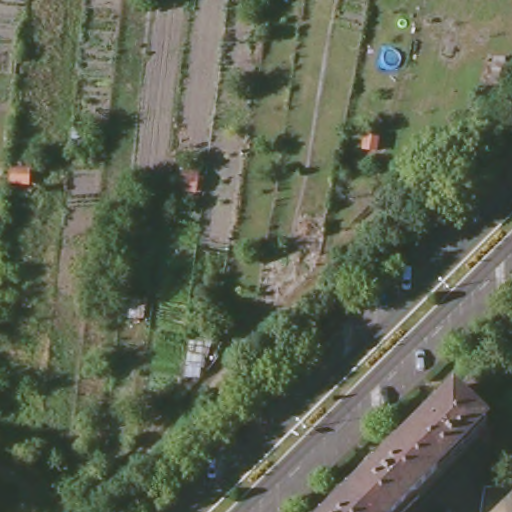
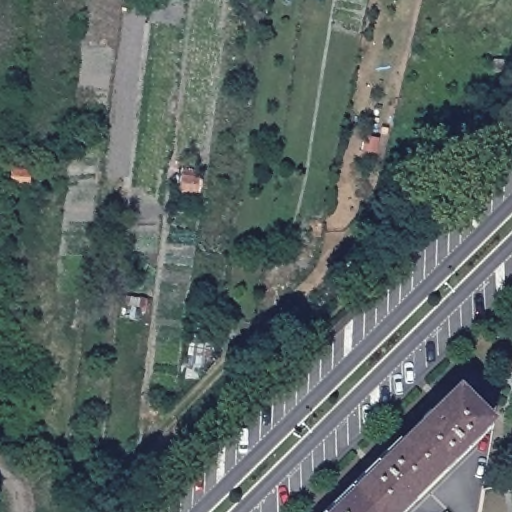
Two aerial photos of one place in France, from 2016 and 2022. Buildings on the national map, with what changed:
unchanged [(45,162),(40,201),(4,197),(7,158),(45,162)]
unchanged [(205,175),(202,196),(180,194),(182,171),(205,175)]
unchanged [(320,249),(315,275),(304,286),(297,283),(293,272),(297,246),(320,249)]
unchanged [(180,353),(191,353),(193,333),(199,333),(199,307),(220,307),(214,367),(207,376),(179,401),(180,385),(180,353)]
unchanged [(482,413),(471,423),(476,429),(393,512),(317,512),(450,382),(482,413)]
unchanged [(478,512),(478,507),(512,503),(512,512),(478,512)]

